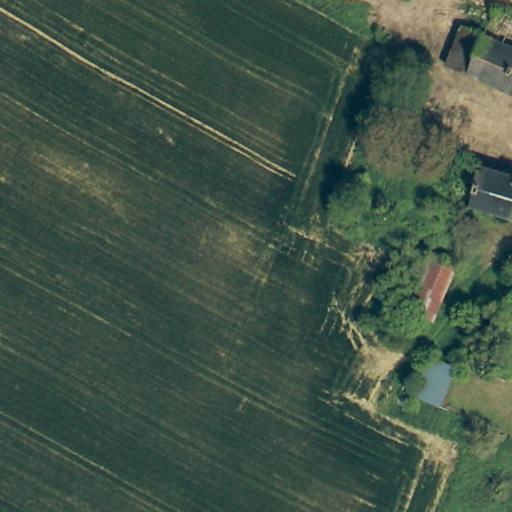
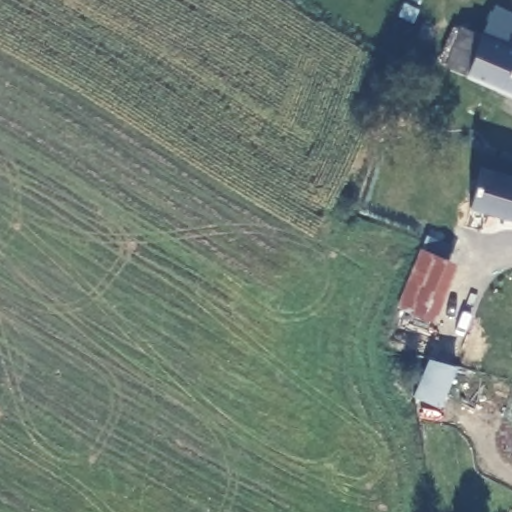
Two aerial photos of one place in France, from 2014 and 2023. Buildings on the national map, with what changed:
unchanged [(512,17),(512,49),(485,37),(496,10),(512,17)]
unchanged [(512,96),(471,78),(472,75),(449,65),(466,30),(485,37),(512,49),(512,96)]
unchanged [(512,218),(473,206),(487,166),(512,174),(512,218)]
unchanged [(437,252),(462,263),(437,317),(414,307),(427,277),(437,252)]
unchanged [(455,365),(436,407),(412,397),(431,359),(455,365)]

